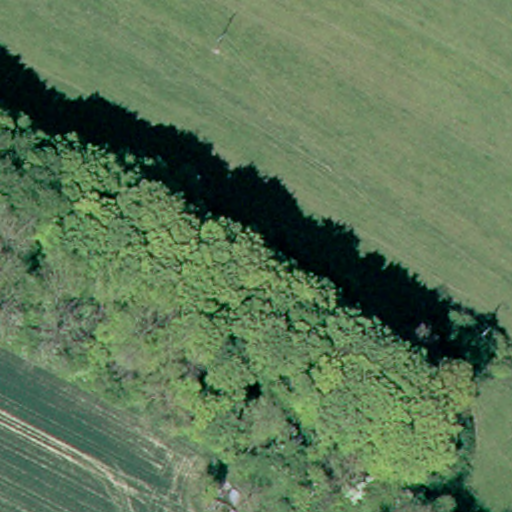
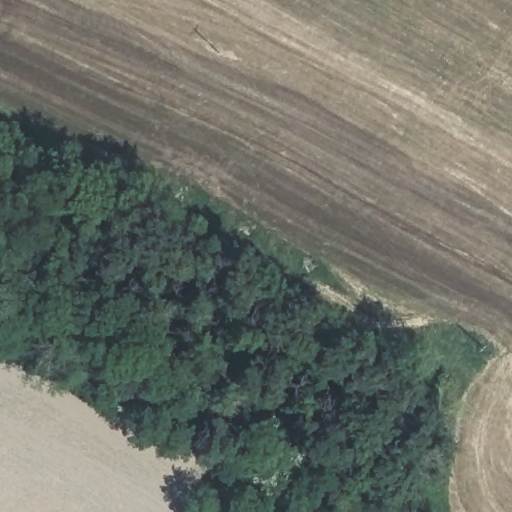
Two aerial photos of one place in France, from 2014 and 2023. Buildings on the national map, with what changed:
unchanged [(202,498),(216,485),(244,512),(216,512),(202,498)]

